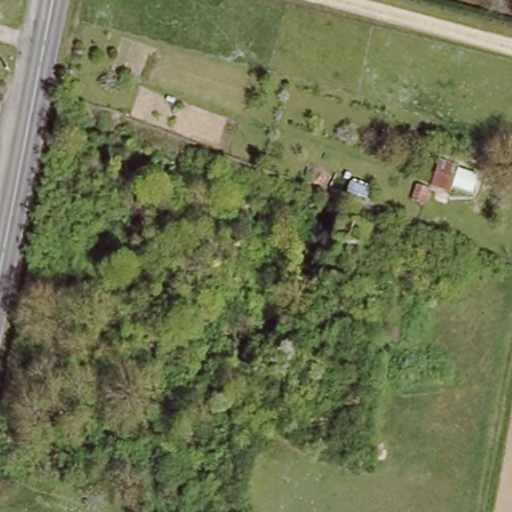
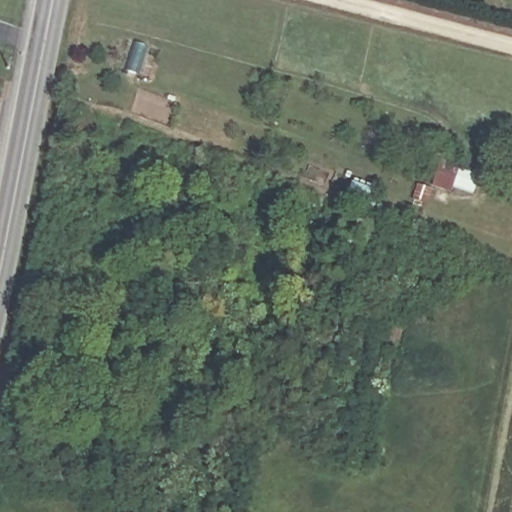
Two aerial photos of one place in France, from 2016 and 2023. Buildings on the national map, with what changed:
unchanged [(436,183),(443,159),(461,164),(455,188),(436,183)]
unchanged [(415,216),(420,200),(431,204),(426,219),(415,216)]

